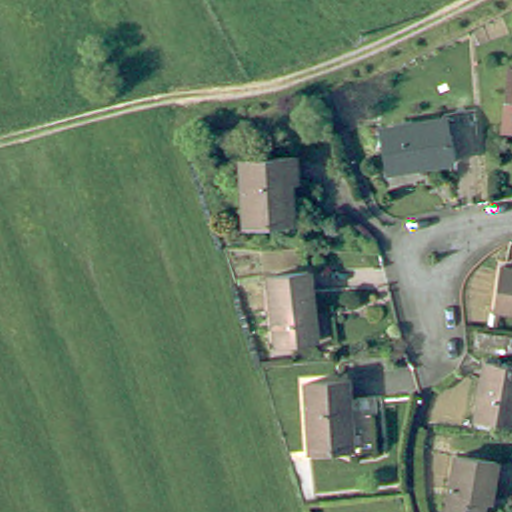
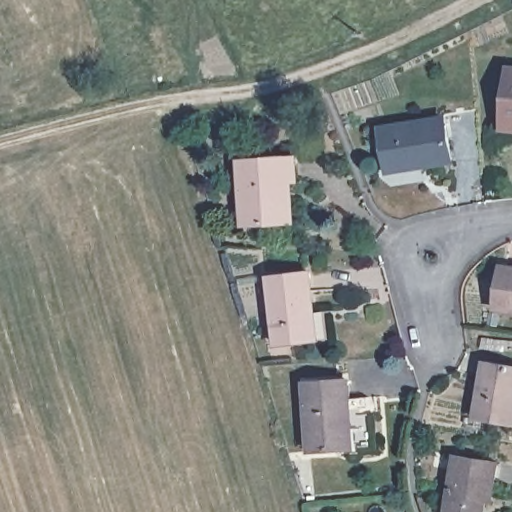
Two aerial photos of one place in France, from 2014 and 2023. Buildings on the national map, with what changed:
unchanged [(510,67),(512,67),(512,129),(503,128),(510,67)]
unchanged [(381,126),(447,116),(454,161),(388,172),(381,126)]
unchanged [(243,227),(239,160),(295,156),(298,181),(286,182),(289,224),(243,227)]
unchanged [(494,310),(502,265),(512,266),(512,313),(494,310)]
unchanged [(319,341),(276,346),(267,278),(310,272),(319,341)]
unchanged [(484,361),(512,365),(512,425),(474,418),(484,361)]
unchanged [(354,449),(309,452),(305,383),(349,380),(354,449)]
unchanged [(499,462),(494,503),(486,502),(485,512),(445,512),(454,455),(499,462)]

